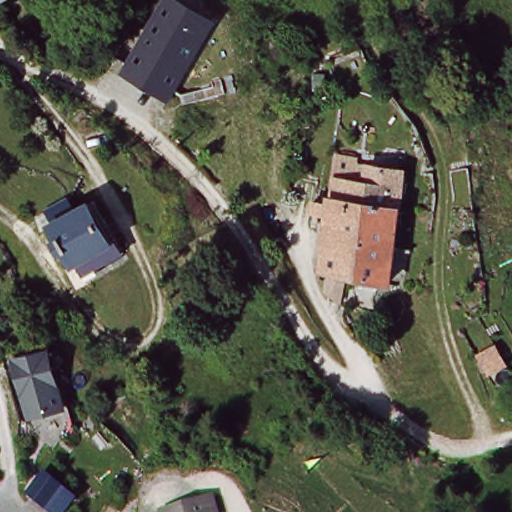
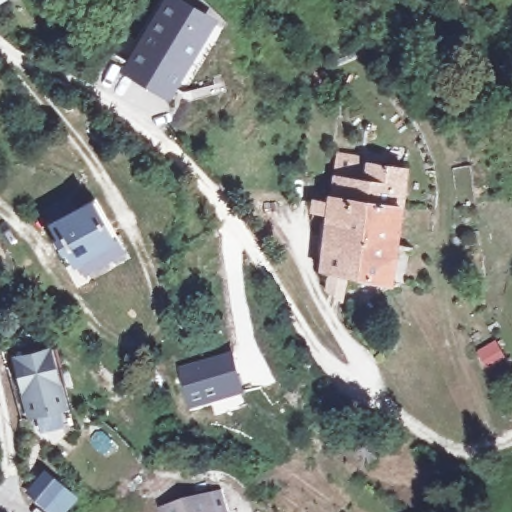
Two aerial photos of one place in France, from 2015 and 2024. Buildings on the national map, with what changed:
unchanged [(179,0),(214,25),(163,94),(124,66),(172,0),(179,0)]
unchanged [(319,288),(324,270),(318,269),(345,149),(366,155),(365,161),(411,171),(385,284),(343,275),(337,300),(319,288)]
unchanged [(91,191),(122,244),(77,269),(48,216),(91,191)]
unchanged [(478,315),(487,334),(467,344),(459,325),(478,315)]
unchanged [(65,407),(31,417),(14,357),(47,348),(65,407)]
new [(235,353),(245,397),(188,410),(177,367),(235,353)]
unchanged [(160,503),(202,492),(212,489),(217,504),(210,507),(211,512),(162,512),(160,503)]

